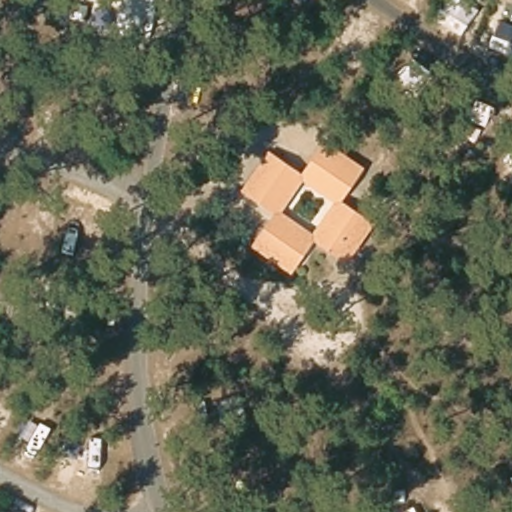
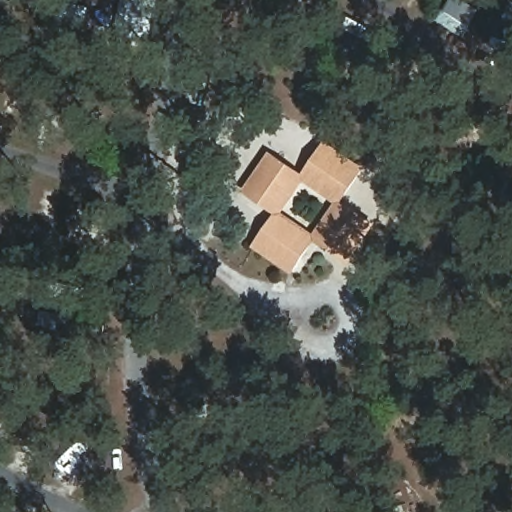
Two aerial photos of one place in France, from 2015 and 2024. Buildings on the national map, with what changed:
unchanged [(313,241),(296,267),(254,244),(273,212),(245,187),(269,149),(300,170),(322,142),(362,168),(344,199),(373,217),(348,261),(313,241)]

